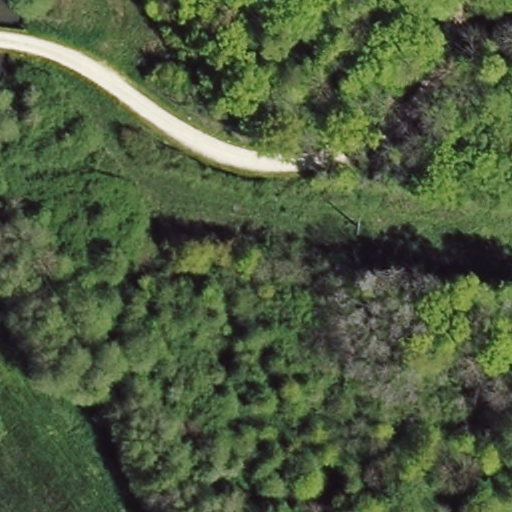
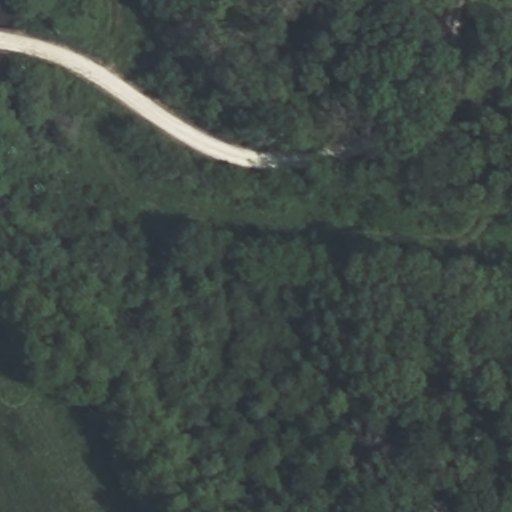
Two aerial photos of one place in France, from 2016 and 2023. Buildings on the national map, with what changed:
unchanged [(401,0),(401,1),(400,0),(401,0)]

